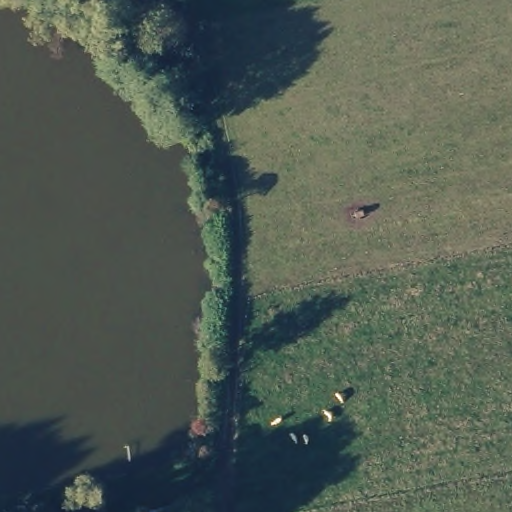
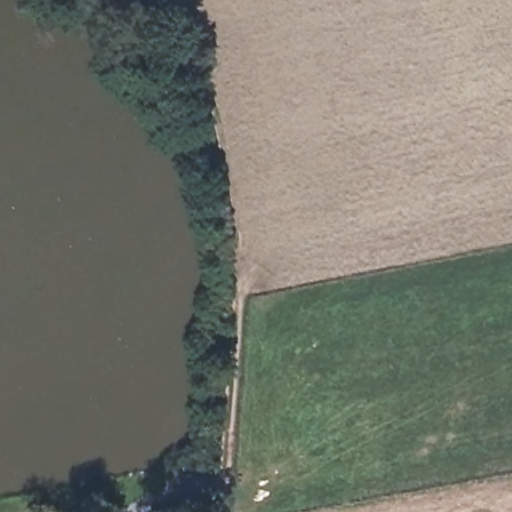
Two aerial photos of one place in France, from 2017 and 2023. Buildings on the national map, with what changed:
unchanged [(170,512),(169,507),(193,503),(194,512),(170,512)]

